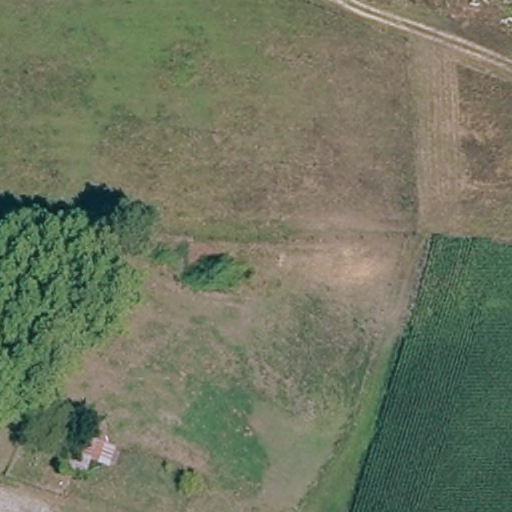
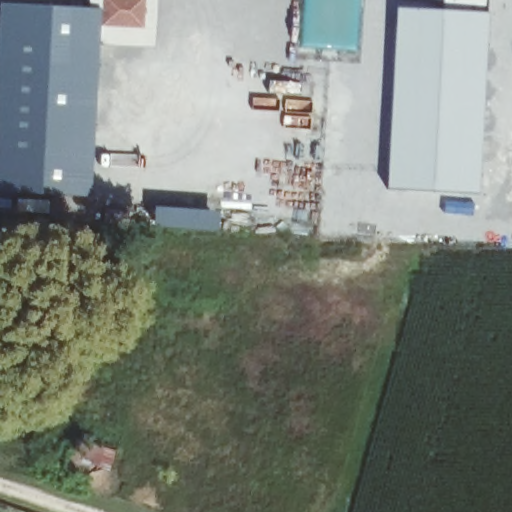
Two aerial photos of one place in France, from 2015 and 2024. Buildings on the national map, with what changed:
new [(92,0),(158,0),(156,49),(99,46),(90,200),(0,194),(0,4),(92,9),(92,0)]
new [(488,14),(480,194),(388,190),(397,9),(442,11),(443,0),(489,0),(488,14)]
new [(219,211),(218,231),(153,227),(155,207),(219,211)]

